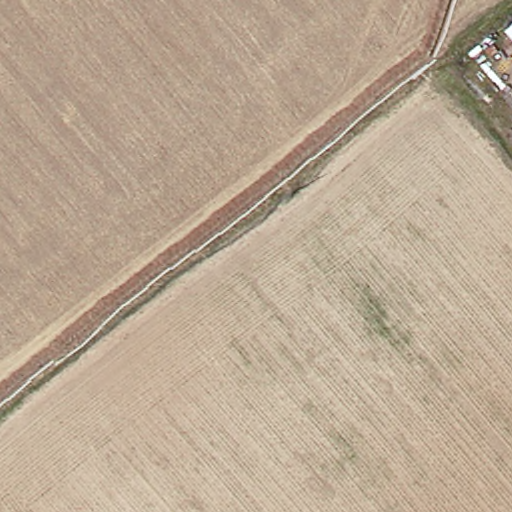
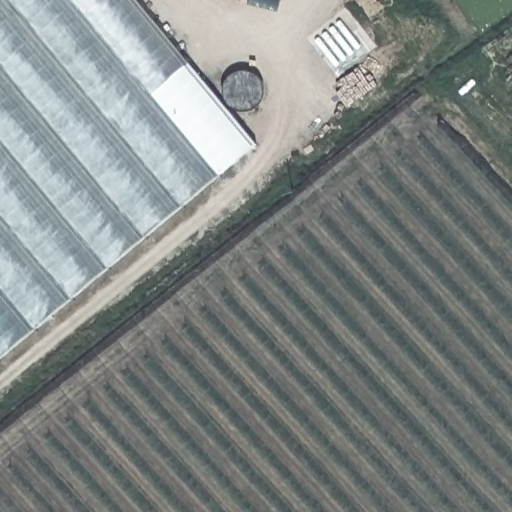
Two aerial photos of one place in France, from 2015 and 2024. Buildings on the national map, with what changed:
demolished [(0,292),(0,0),(27,0),(146,150),(0,292)]
new [(0,360),(0,0),(137,0),(258,144),(0,360)]
demolished [(169,128),(70,0),(298,0),(169,128)]

